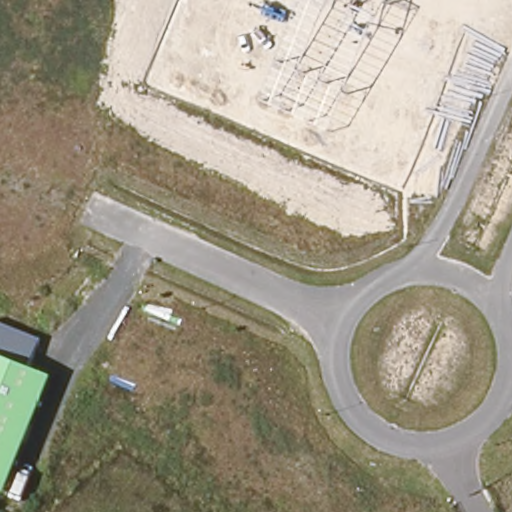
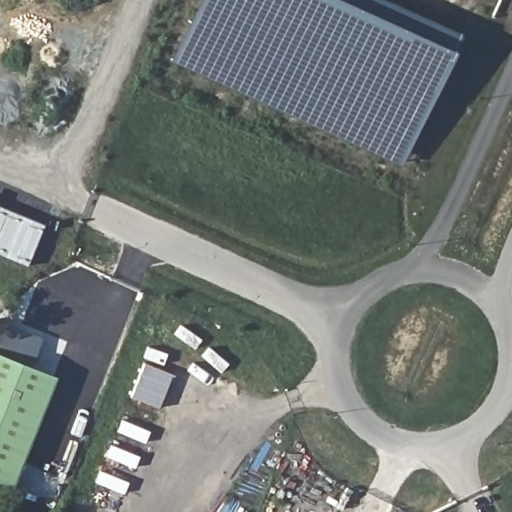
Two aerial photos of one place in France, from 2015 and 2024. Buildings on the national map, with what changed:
new [(169,60),(197,0),(388,0),(460,32),(452,48),(400,165),(169,60)]
new [(27,265),(0,254),(0,207),(43,224),(27,265)]
unchanged [(7,491),(0,489),(0,322),(41,340),(30,365),(53,377),(7,491)]

